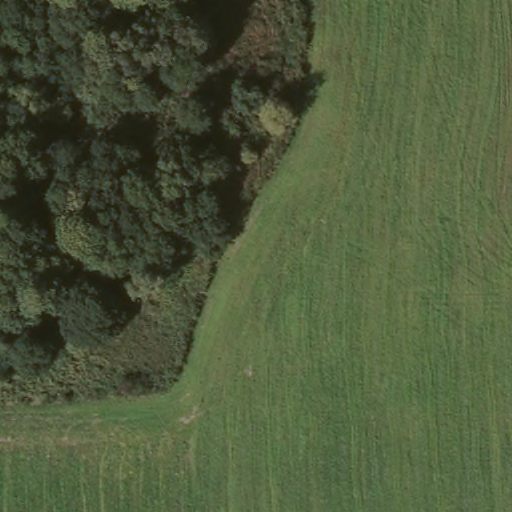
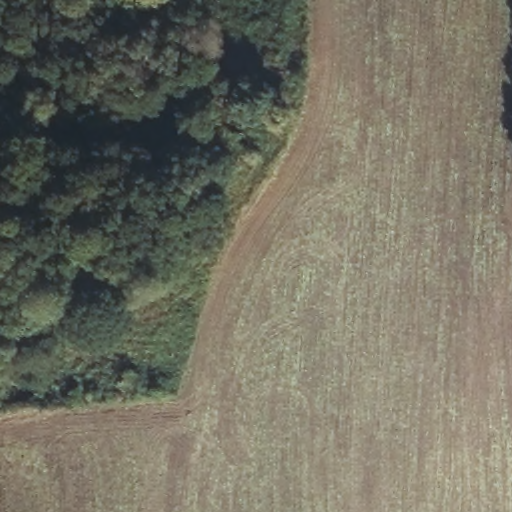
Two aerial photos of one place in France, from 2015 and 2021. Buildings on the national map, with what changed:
[]

